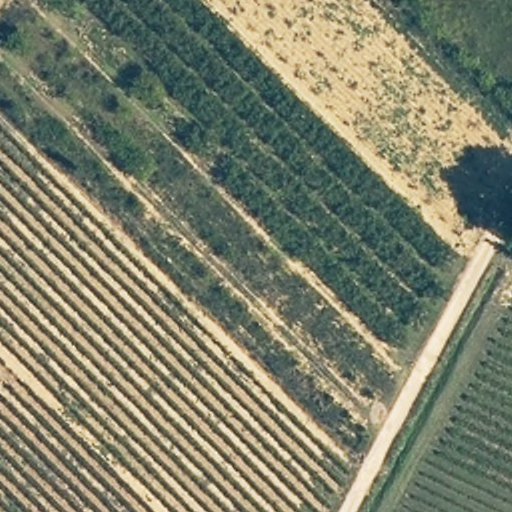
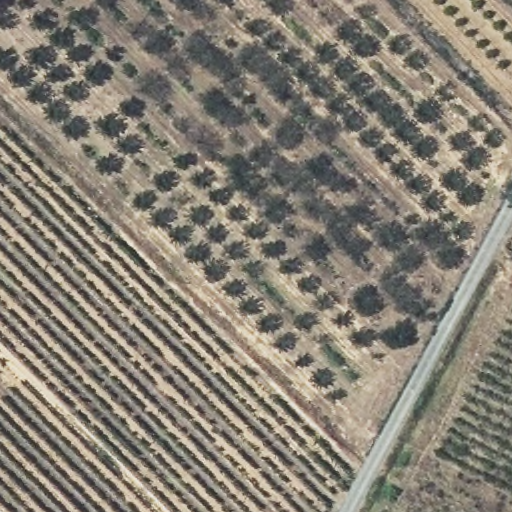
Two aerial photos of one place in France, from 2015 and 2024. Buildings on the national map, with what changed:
[]

